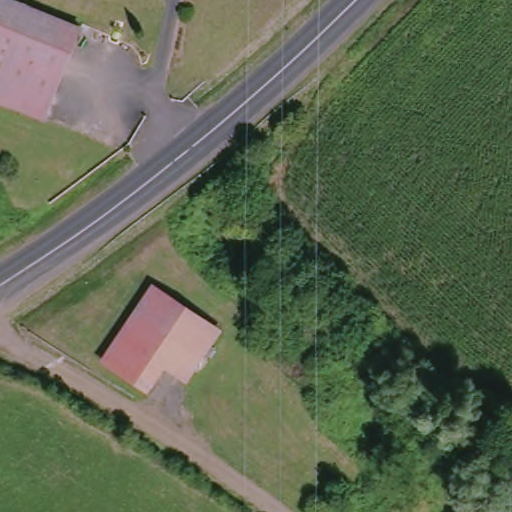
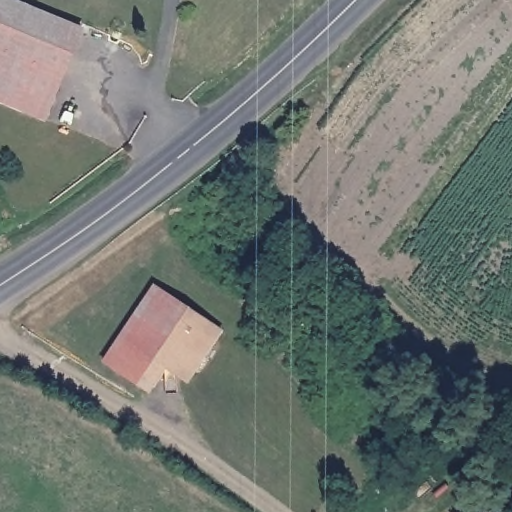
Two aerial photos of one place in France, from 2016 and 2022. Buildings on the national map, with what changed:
unchanged [(43,122),(0,105),(0,0),(5,0),(79,29),(43,122)]
unchanged [(148,358),(131,382),(96,359),(147,285),(181,306),(148,358)]
unchanged [(214,327),(181,380),(148,358),(181,306),(214,327)]

